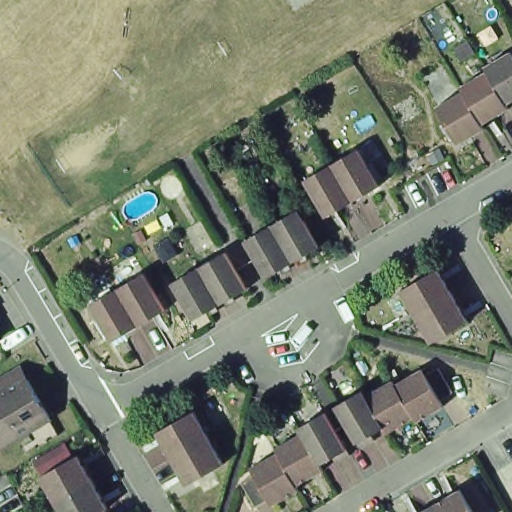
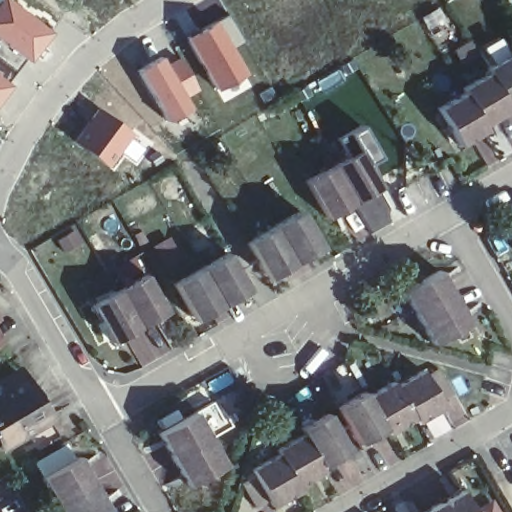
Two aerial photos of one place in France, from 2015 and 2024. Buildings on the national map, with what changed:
new [(29,63),(25,60),(17,71),(0,57),(0,0),(7,0),(50,34),(29,63)]
new [(215,21),(229,15),(245,42),(230,51),(244,74),(214,89),(185,39),(215,21)]
unchanged [(485,71),(482,66),(510,51),(512,55),(512,100),(505,105),(485,71)]
new [(17,71),(7,84),(0,94),(0,57),(17,71)]
new [(162,58),(167,64),(179,59),(198,91),(185,99),(190,108),(165,121),(137,71),(162,58)]
unchanged [(507,109),(480,125),(462,91),(459,87),(485,71),(505,105),(507,109)]
unchanged [(482,129),(457,144),(435,106),(462,91),(480,125),(482,129)]
new [(130,135),(107,168),(73,144),(97,113),(130,135)]
unchanged [(330,163),(356,148),(378,186),(350,201),(330,163)]
unchanged [(324,216),(302,179),(330,163),(350,201),(324,216)]
unchanged [(319,250),(292,266),(270,228),(297,213),(319,250)]
unchanged [(292,266),(264,282),(244,243),(270,228),(292,266)]
unchanged [(219,308),(198,270),(225,255),(245,293),(219,308)]
unchanged [(192,323),(170,286),(198,270),(219,308),(192,323)]
unchanged [(435,274),(450,301),(414,322),(399,295),(435,274)]
unchanged [(162,316),(137,331),(115,293),(140,278),(162,316)]
unchanged [(110,346),(88,308),(115,293),(137,331),(110,346)]
unchanged [(450,301),(465,327),(429,348),(414,322),(450,301)]
unchanged [(415,423),(412,419),(393,386),(420,371),(424,376),(437,368),(452,394),(438,401),(442,408),(415,423)]
unchanged [(34,447),(26,432),(0,447),(0,392),(2,392),(0,389),(0,386),(10,380),(14,388),(28,381),(47,416),(45,417),(56,435),(34,447)]
unchanged [(364,396),(390,381),(393,386),(412,419),(385,435),(381,427),(364,396)]
unchanged [(381,427),(367,435),(372,443),(359,450),(334,407),(361,392),(364,396),(381,427)]
unchanged [(170,459),(155,433),(192,411),(207,438),(170,459)]
unchanged [(299,434),(296,428),(324,413),(348,456),(334,465),(330,458),(317,466),(299,434)]
unchanged [(275,453),(272,449),(299,434),(317,466),(320,472),(295,487),(275,453)]
unchanged [(207,438),(222,464),(185,485),(170,459),(207,438)]
unchanged [(252,476),(247,468),(275,453),(295,487),(296,491),(270,505),(267,500),(253,506),(240,482),(252,476)]
unchanged [(95,481),(59,502),(44,476),(80,455),(95,481)]
unchanged [(95,481),(110,508),(103,512),(64,512),(59,502),(95,481)]
unchanged [(435,507),(461,492),(474,512),(438,512),(435,507)]
unchanged [(438,512),(426,512),(435,507),(438,512)]

